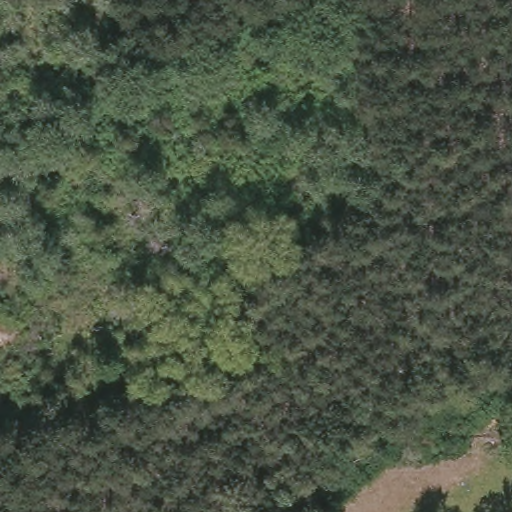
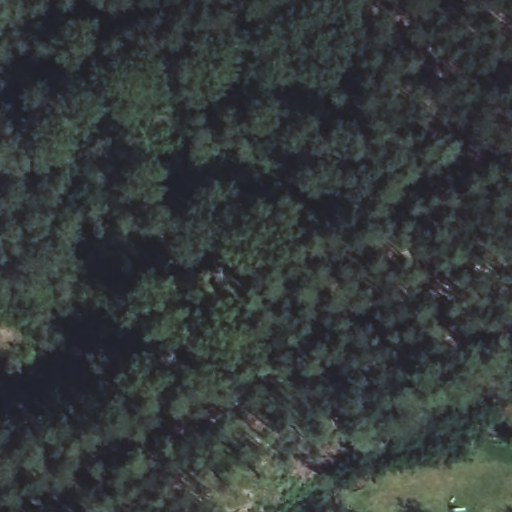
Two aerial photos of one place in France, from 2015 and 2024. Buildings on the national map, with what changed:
[]

